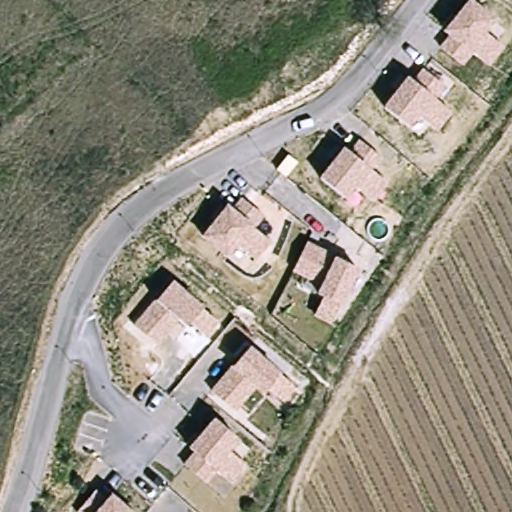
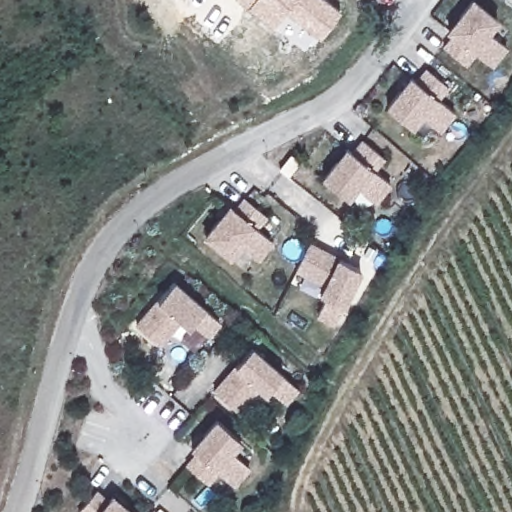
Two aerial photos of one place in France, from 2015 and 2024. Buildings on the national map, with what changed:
new [(340,8),(320,37),(286,10),(274,26),(248,7),(240,0),(329,0),(340,8)]
unchanged [(443,46),(451,36),(446,31),(470,0),(475,0),(499,20),(488,32),(507,47),(492,65),(476,52),(466,66),(443,46)]
new [(509,0),(512,0),(512,2),(509,0)]
unchanged [(423,117),(413,127),(386,106),(410,75),(416,80),(426,68),(448,87),(439,100),(454,112),(441,131),(423,117)]
unchanged [(322,177),(346,147),(351,151),(361,139),(384,158),(375,171),(391,183),(376,203),(358,187),(349,198),(322,177)]
unchanged [(259,260),(240,245),(230,258),(203,238),(229,204),(233,208),(243,197),(267,218),(258,229),(273,241),(259,260)]
unchanged [(309,241),(338,256),(361,268),(343,305),(333,325),(316,316),(325,298),(319,294),(323,285),(294,271),(309,241)]
unchanged [(209,335),(192,323),(189,327),(182,320),(161,346),(136,324),(158,300),(175,281),(206,307),(220,322),(209,335)]
unchanged [(213,390),(233,365),(235,367),(252,346),(283,373),(298,387),(286,402),(269,389),(265,395),(258,389),(239,412),(213,390)]
unchanged [(195,451),(190,448),(215,418),(241,440),(232,452),(249,466),(234,485),(218,471),(208,484),(185,465),(195,451)]
unchanged [(109,499),(112,494),(133,512),(79,512),(97,490),(109,499)]

